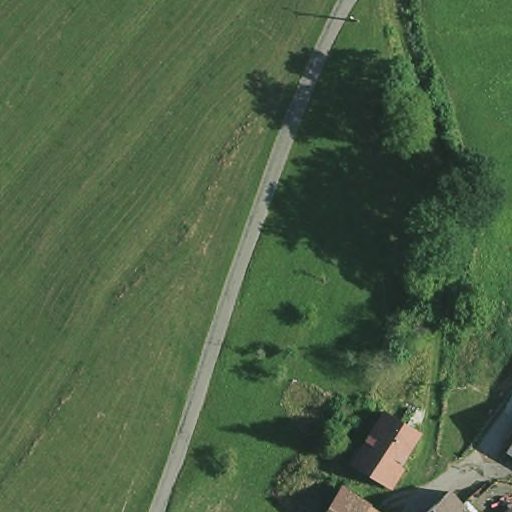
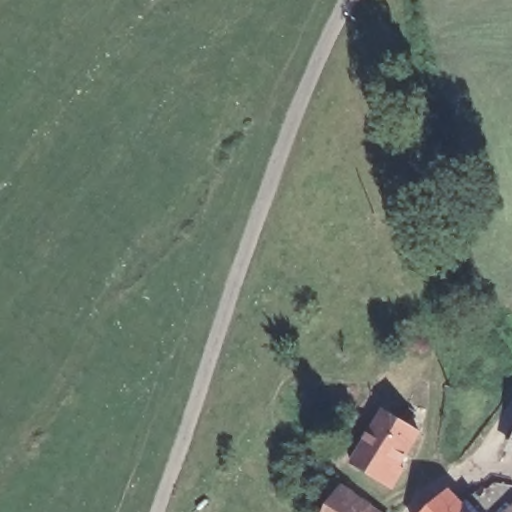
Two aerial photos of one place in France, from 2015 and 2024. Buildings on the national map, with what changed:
unchanged [(387,493),(348,470),(358,453),(377,419),(415,439),(395,473),(398,474),(387,493)]
unchanged [(340,492),(373,512),(327,512),(340,492)]
unchanged [(448,497),(463,512),(432,512),(448,497)]

